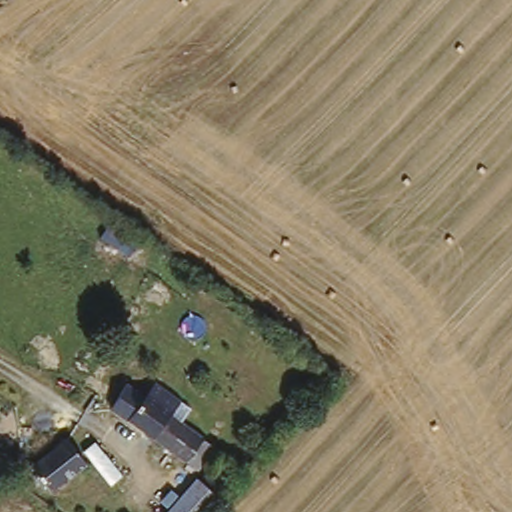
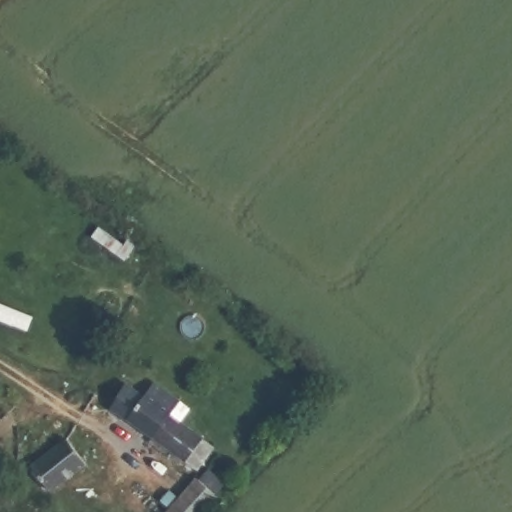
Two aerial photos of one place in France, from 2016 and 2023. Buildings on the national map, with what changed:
unchanged [(110,408),(125,387),(152,405),(157,399),(181,414),(177,420),(200,437),(213,447),(197,467),(110,408)]
unchanged [(48,436),(62,427),(81,452),(47,479),(42,472),(36,477),(24,467),(30,462),(22,453),(48,436)]
unchanged [(195,482),(217,501),(206,512),(166,512),(195,482)]

